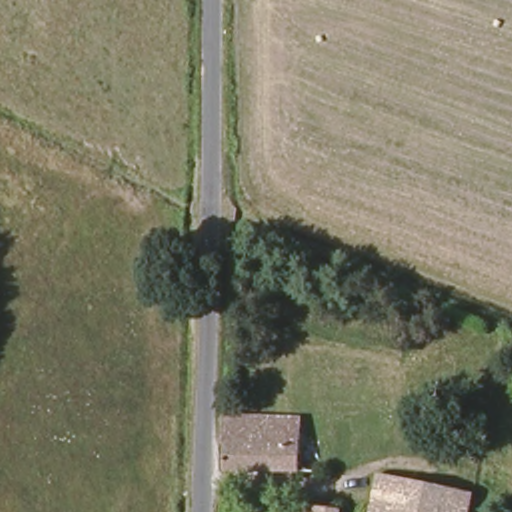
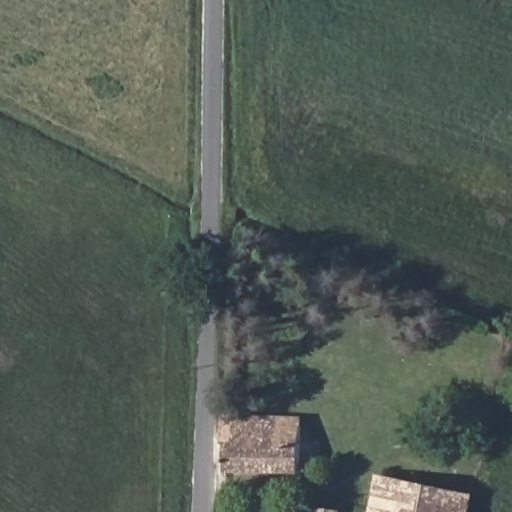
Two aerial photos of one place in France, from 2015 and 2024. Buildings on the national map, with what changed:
unchanged [(302,415),(302,445),(302,473),(233,474),(229,474),(229,416),(235,416),(302,415)]
unchanged [(444,485),(442,512),(376,512),(382,476),(444,485)]
unchanged [(470,489),(467,512),(442,512),(444,485),(470,489)]
unchanged [(342,509),(342,512),(314,512),(315,507),(342,509)]

